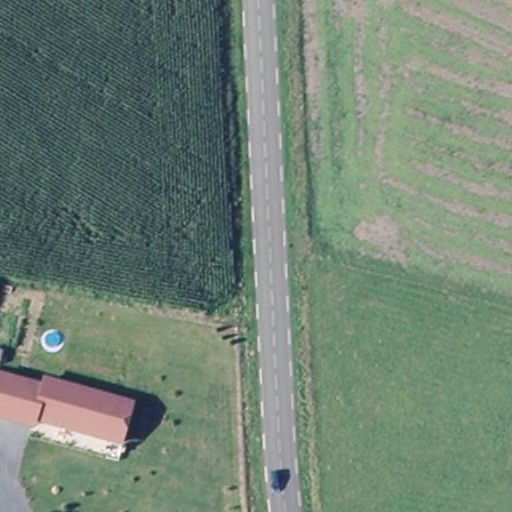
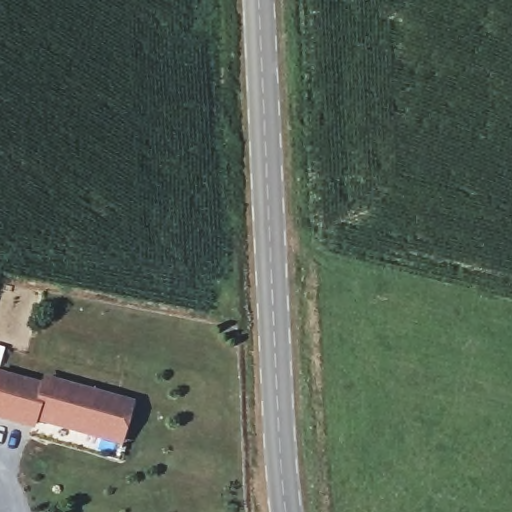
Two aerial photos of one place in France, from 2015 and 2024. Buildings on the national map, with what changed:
unchanged [(42,386),(44,378),(132,402),(122,446),(35,422),(32,430),(0,421),(0,376),(42,386)]

